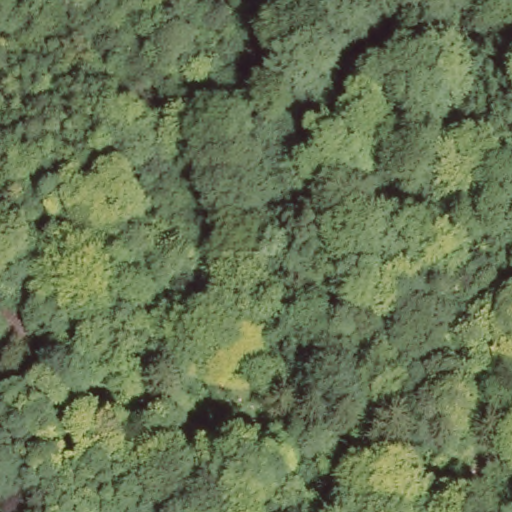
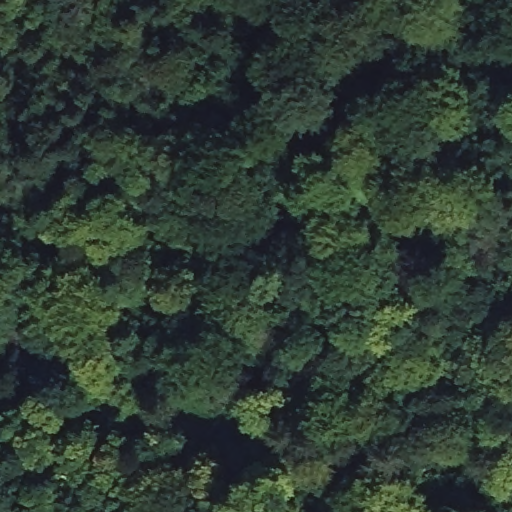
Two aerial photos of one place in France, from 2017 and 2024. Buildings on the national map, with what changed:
unchanged [(250,111),(240,119),(220,99),(231,91),(250,111)]
unchanged [(24,356),(0,335),(0,311),(5,306),(42,339),(24,356)]

